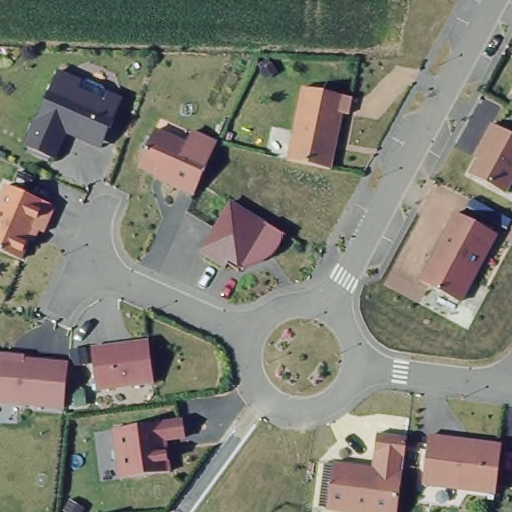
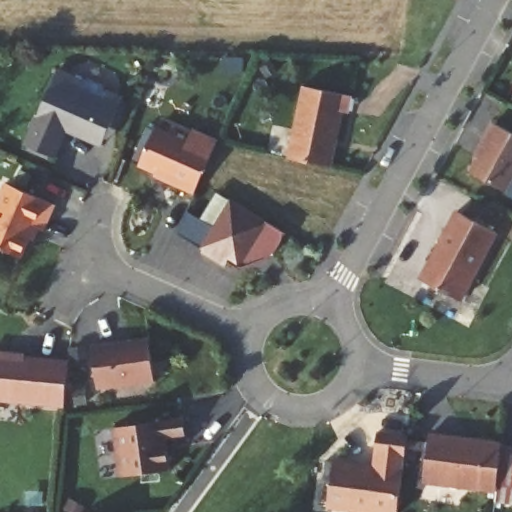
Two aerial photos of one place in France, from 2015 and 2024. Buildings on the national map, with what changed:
unchanged [(107,145),(97,141),(70,130),(58,157),(30,145),(62,70),(87,80),(93,78),(110,85),(111,89),(128,96),(122,109),(115,125),(111,135),(107,145)]
unchanged [(288,161),(286,161),(302,88),(352,100),(348,116),(342,115),(329,171),(288,161)]
unchanged [(468,175),(487,144),(485,142),(495,127),(512,138),(512,181),(502,197),(468,175)]
unchanged [(163,182),(164,180),(137,168),(154,131),(185,145),(191,134),(215,145),(193,196),(163,182)]
unchanged [(42,230),(33,226),(20,257),(0,249),(0,196),(6,182),(55,204),(42,230)]
unchanged [(265,221),(266,220),(283,230),(282,234),(280,239),(277,244),(274,247),(270,251),(266,255),(262,257),(255,260),(250,262),(244,265),(242,265),(240,264),(238,267),(227,261),(225,265),(201,251),(203,247),(202,246),(228,200),(265,221)]
unchanged [(492,237),(455,305),(415,283),(453,215),(492,237)]
unchanged [(93,347),(151,340),(156,381),(155,381),(98,388),(93,347)]
unchanged [(0,351),(27,353),(27,356),(70,361),(65,406),(0,400),(0,351)]
unchanged [(185,437),(165,440),(170,472),(121,478),(115,428),(183,420),(185,437)]
unchanged [(397,512),(327,512),(331,471),(372,475),(377,467),(377,457),(372,457),(375,437),(405,441),(397,512)]
unchanged [(420,487),(426,440),(445,441),(444,445),(463,447),(464,444),(500,448),(493,496),(420,487)]

